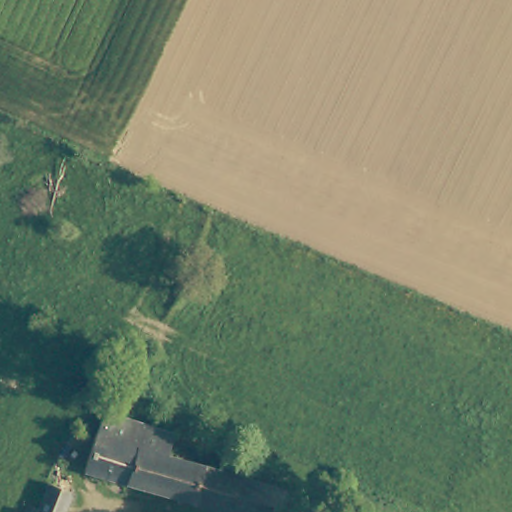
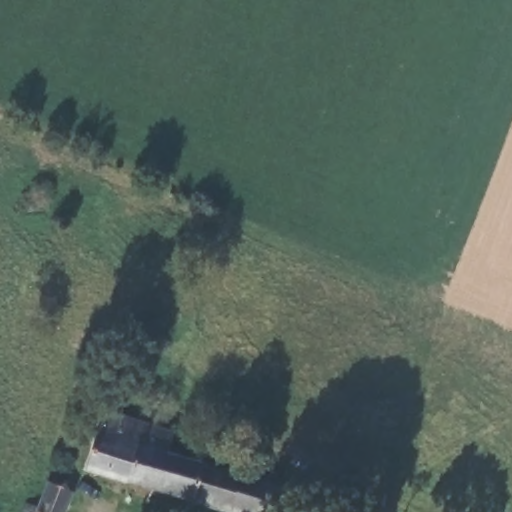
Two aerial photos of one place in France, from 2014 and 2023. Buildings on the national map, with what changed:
unchanged [(77,467),(89,427),(99,409),(167,431),(161,452),(295,492),(285,512),(229,512),(77,467)]
unchanged [(47,485),(70,495),(63,512),(39,512),(47,485)]
unchanged [(27,508),(37,512),(26,512),(27,508)]

